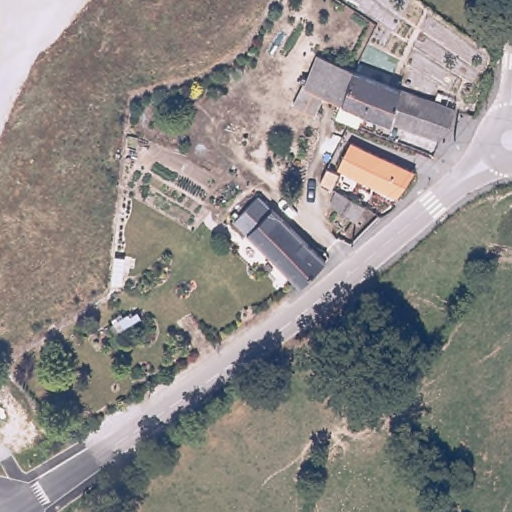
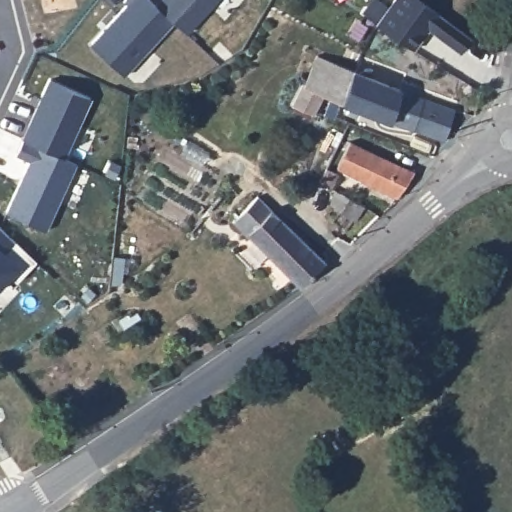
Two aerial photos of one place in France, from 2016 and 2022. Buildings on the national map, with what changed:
new [(90,46),(126,6),(123,3),(126,0),(151,0),(156,5),(174,22),(125,76),(90,46)]
unchanged [(245,0),(226,21),(215,11),(190,38),(156,5),(161,0),(245,0)]
new [(429,29),(412,49),(376,27),(395,0),(419,0),(470,38),(460,52),(429,29)]
unchanged [(356,71),(342,103),(322,96),(315,112),(293,103),(301,81),(305,82),(318,55),(358,68),(356,71)]
unchanged [(436,101),(441,90),(462,98),(448,139),(366,112),(361,128),(335,117),(342,103),(356,71),(436,101)]
new [(78,165),(47,232),(6,212),(32,161),(18,155),(49,80),(92,98),(66,159),(78,165)]
unchanged [(400,196),(337,167),(349,141),(415,169),(401,195),(400,196)]
unchanged [(247,186),(315,250),(288,275),(224,209),(247,186)]
unchanged [(370,204),(360,219),(333,205),(338,192),(370,204)]
new [(39,259),(19,279),(11,272),(0,285),(0,223),(39,259)]

